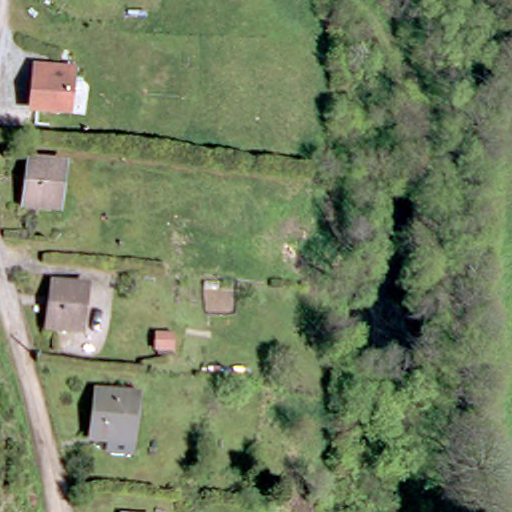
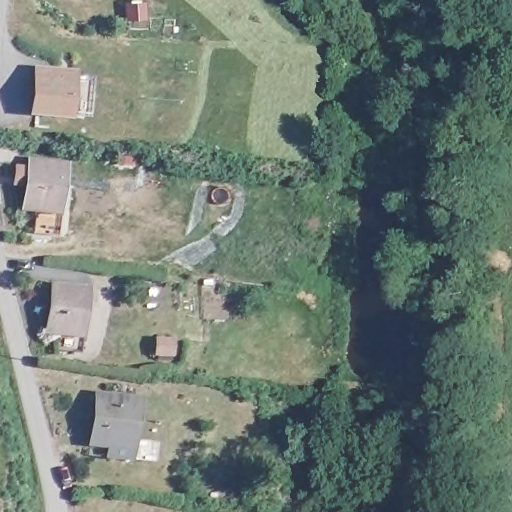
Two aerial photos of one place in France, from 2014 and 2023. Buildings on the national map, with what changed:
unchanged [(69,122),(40,119),(42,93),(44,80),(59,81),(72,82),(69,122)]
unchanged [(70,170),(66,213),(34,210),(37,166),(70,170)]
unchanged [(82,299),(79,341),(51,338),(54,296),(82,299)]
unchanged [(112,454),(97,452),(102,407),(137,411),(134,449),(132,458),(112,454)]

